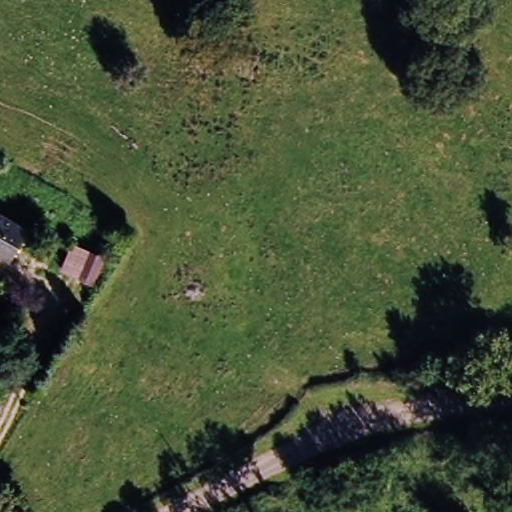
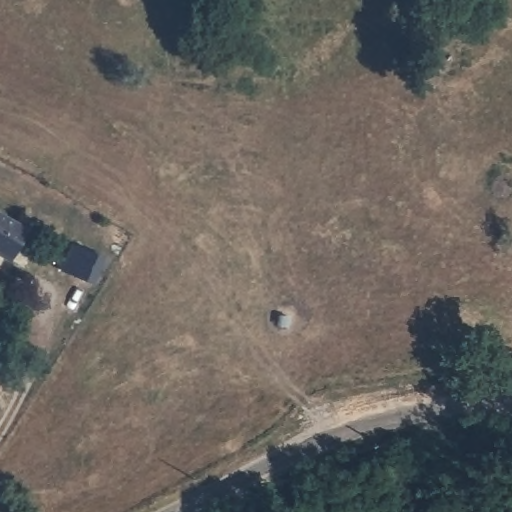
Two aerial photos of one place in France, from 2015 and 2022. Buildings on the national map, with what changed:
unchanged [(27,230),(14,258),(0,250),(0,215),(27,230)]
unchanged [(103,273),(88,297),(71,287),(85,261),(103,273)]

